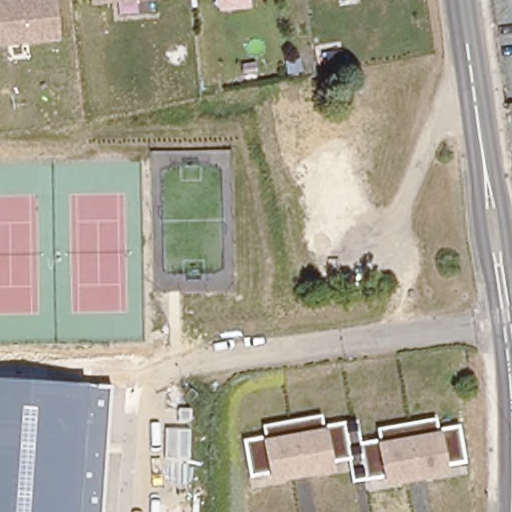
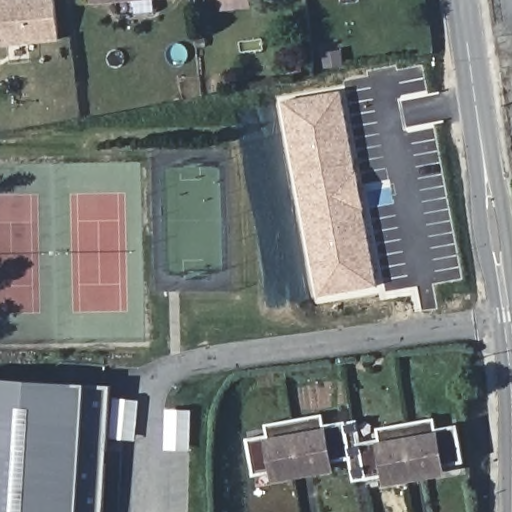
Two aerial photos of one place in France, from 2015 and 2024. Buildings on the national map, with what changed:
unchanged [(24,0),(55,0),(59,40),(0,46),(0,0),(4,0),(4,2),(24,0)]
unchanged [(91,0),(121,0),(91,3),(91,0)]
new [(317,298),(281,101),(341,91),(377,287),(317,298)]
unchanged [(0,379),(109,386),(103,488),(116,488),(115,512),(0,512),(0,379)]
unchanged [(465,463),(446,467),(448,475),(385,487),(383,479),(353,484),(349,461),(332,464),(334,472),(271,483),(269,475),(250,479),(242,439),(265,434),(263,426),(321,416),(325,425),(356,421),(361,442),(378,439),(377,429),(436,419),(438,429),(459,427),(465,463)]

